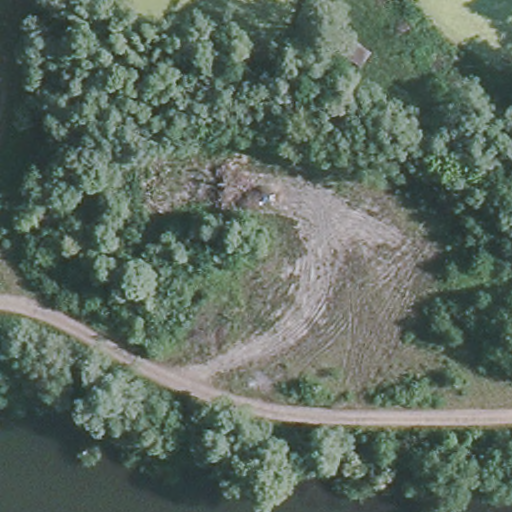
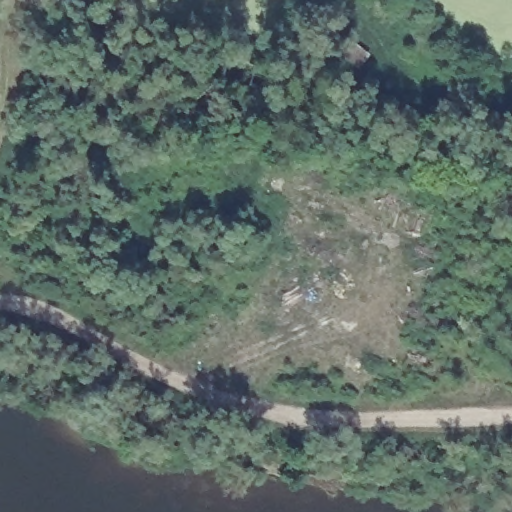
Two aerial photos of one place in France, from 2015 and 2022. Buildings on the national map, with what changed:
unchanged [(362,69),(343,56),(351,38),(373,52),(362,69)]

